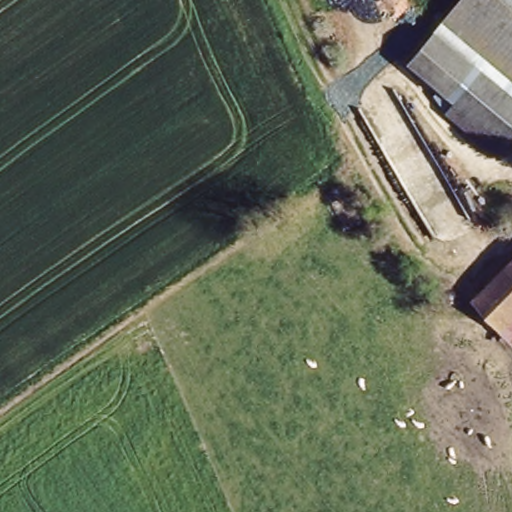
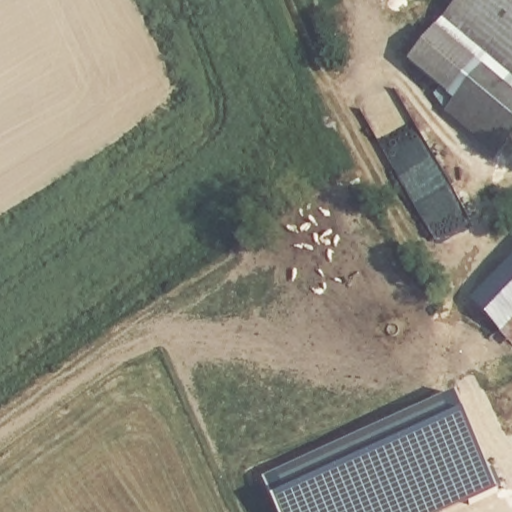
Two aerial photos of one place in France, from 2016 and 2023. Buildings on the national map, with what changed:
unchanged [(444,117),(452,106),(407,65),(444,20),(461,0),(512,0),(512,142),(497,158),(444,117)]
unchanged [(468,302),(512,260),(512,347),(468,302)]
new [(497,492),(451,512),(277,512),(272,502),(265,480),(457,396),(467,417),(497,492)]

